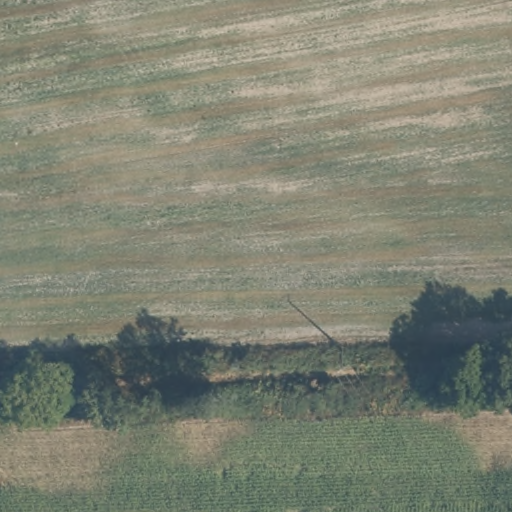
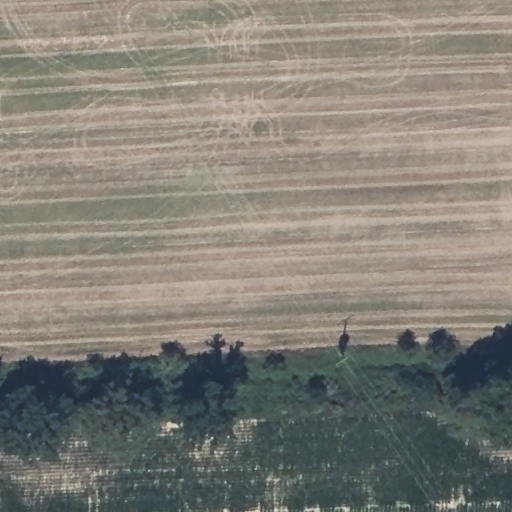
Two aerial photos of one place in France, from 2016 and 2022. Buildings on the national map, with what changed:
[]

